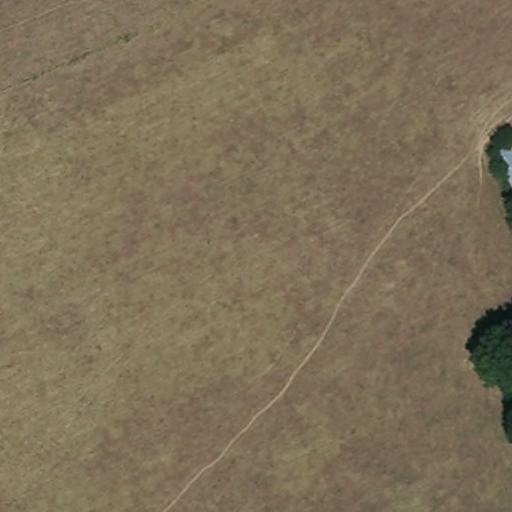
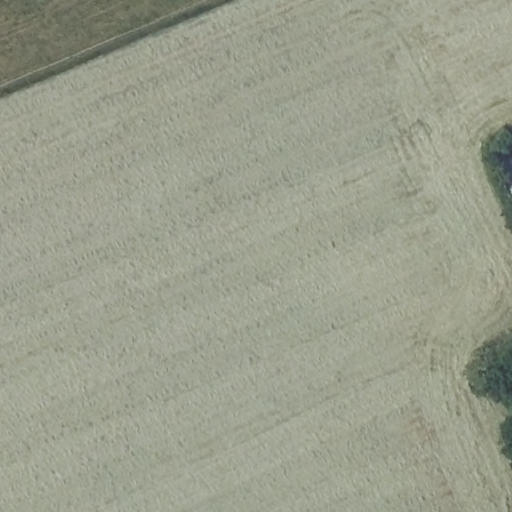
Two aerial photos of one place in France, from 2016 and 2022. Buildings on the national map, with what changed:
unchanged [(512,140),(512,147),(509,141),(512,140)]

